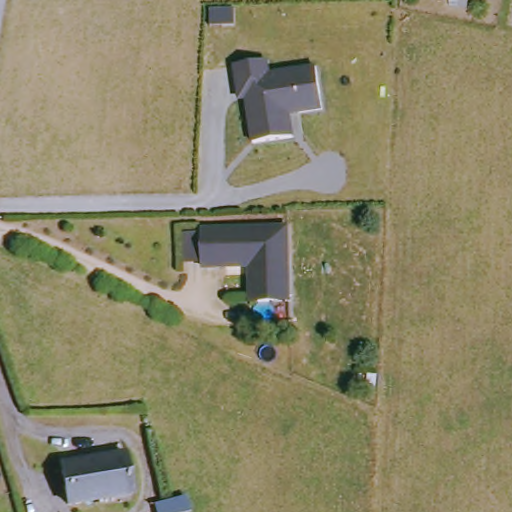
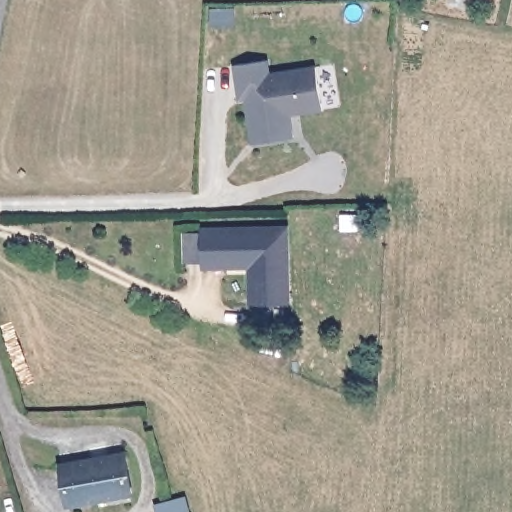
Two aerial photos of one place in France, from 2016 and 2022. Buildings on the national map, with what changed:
unchanged [(248,103),(241,104),(237,67),(272,62),(274,76),(319,69),(326,113),(294,118),(298,142),(256,148),(248,103)]
unchanged [(268,299),(261,295),(260,276),(263,273),(263,264),(210,265),(210,259),(192,259),(191,231),(208,230),(208,226),(296,225),(297,298),(268,299)]
unchanged [(138,491),(74,508),(62,466),(126,449),(138,491)]
unchanged [(186,502),(189,512),(157,512),(157,510),(167,507),(186,502)]

